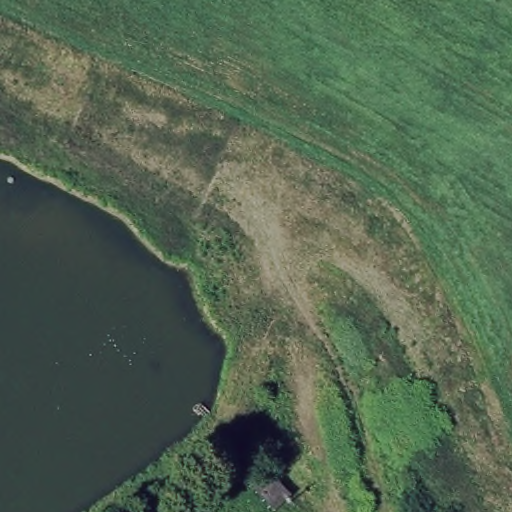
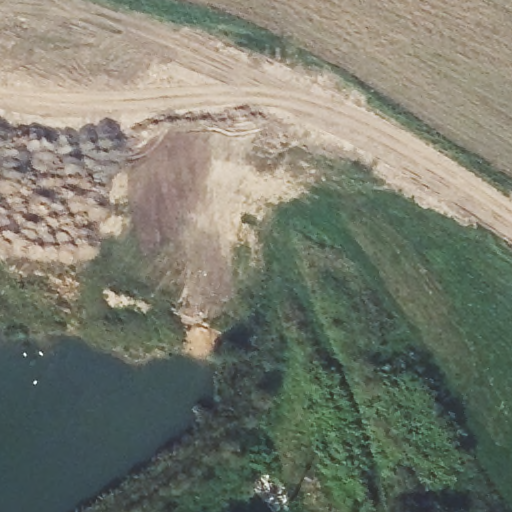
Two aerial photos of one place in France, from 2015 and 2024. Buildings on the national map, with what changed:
unchanged [(266,465),(291,490),(275,505),(251,481),(266,465)]

